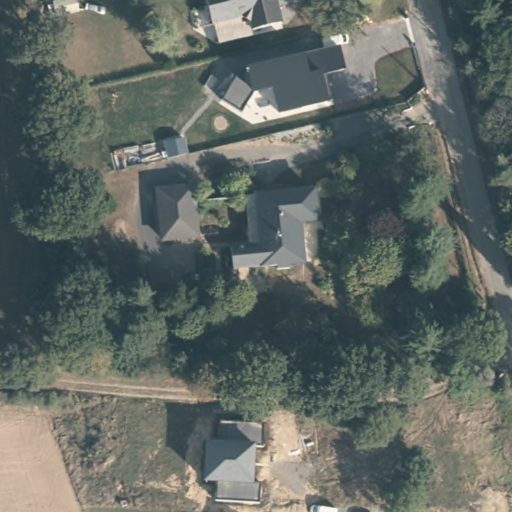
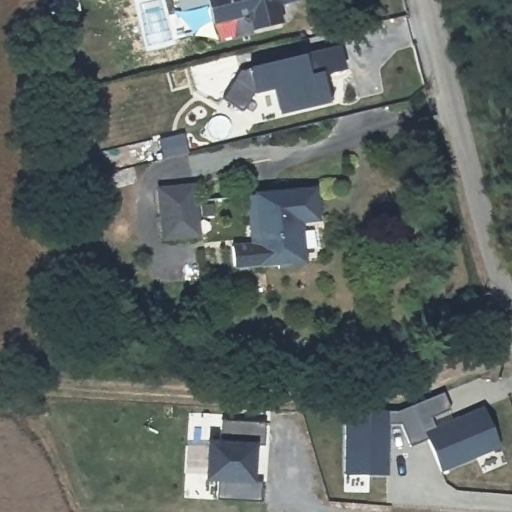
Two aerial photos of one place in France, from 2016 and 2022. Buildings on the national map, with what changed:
unchanged [(207,8),(179,13),(177,0),(205,0),(207,8)]
unchanged [(266,2),(274,0),(281,27),(251,34),(249,25),(241,21),(211,27),(205,0),(266,0),(266,2)]
unchanged [(282,115),(273,89),(254,93),(243,110),(224,100),(250,68),(307,57),(342,50),(344,71),(327,77),(330,101),(282,115)]
unchanged [(161,189),(197,186),(199,236),(166,239),(161,189)]
unchanged [(322,216),(305,217),(308,259),(260,265),(259,264),(235,266),(234,242),(257,241),(257,235),(254,193),(263,192),(319,187),(322,216)]
new [(440,474),(424,438),(407,445),(397,422),(389,422),(389,475),(340,475),(341,411),(398,411),(440,393),(450,420),(484,406),(502,446),(440,474)]
unchanged [(261,446),(254,447),(253,482),(261,482),(260,500),(217,497),(220,481),(204,479),(207,441),(223,441),(223,422),(264,423),(261,446)]

